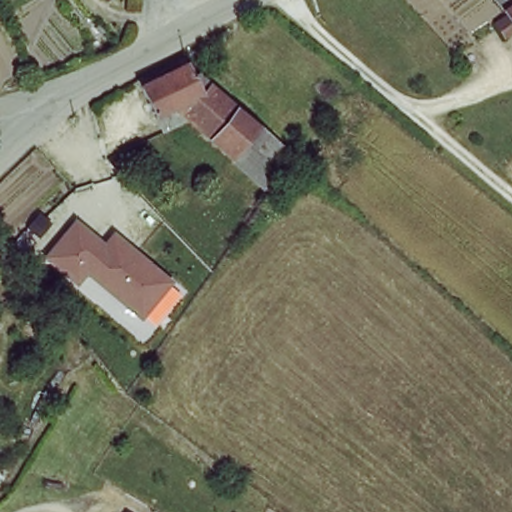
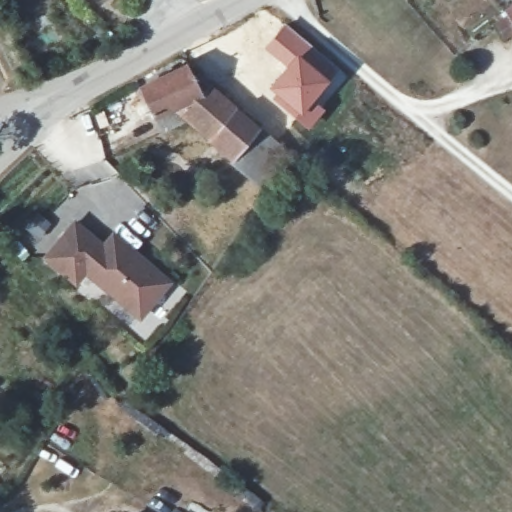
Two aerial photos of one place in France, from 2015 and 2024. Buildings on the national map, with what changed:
unchanged [(510,15),(507,10),(512,7),(512,33),(509,35),(500,22),(510,15)]
new [(284,66),(263,49),(285,23),(340,70),(313,99),(326,110),(310,130),(277,104),(263,89),(284,66)]
unchanged [(167,100),(182,112),(158,122),(138,80),(182,60),(187,74),(195,70),(208,81),(167,100)]
unchanged [(206,131),(182,112),(167,100),(208,81),(232,102),(206,131)]
unchanged [(254,121),(258,119),(292,147),(266,180),(206,131),(232,102),(254,121)]
unchanged [(100,243),(110,231),(174,283),(170,287),(180,295),(156,325),(144,318),(140,321),(100,288),(83,276),(75,286),(40,258),(72,221),(100,243)]

